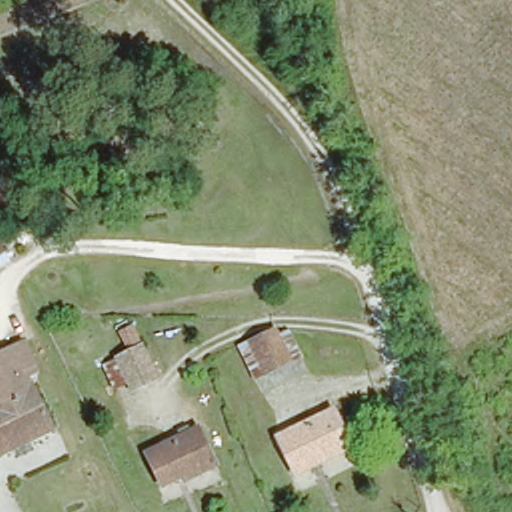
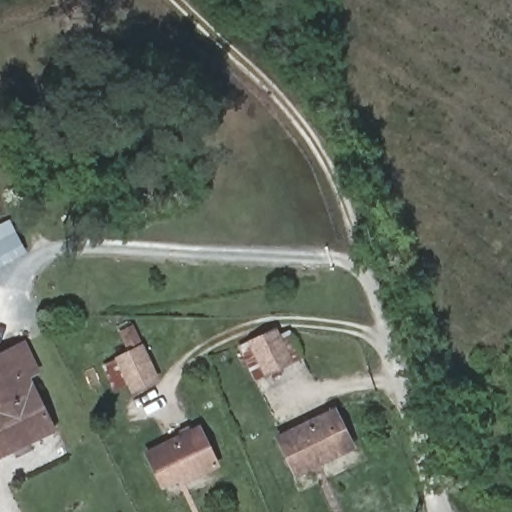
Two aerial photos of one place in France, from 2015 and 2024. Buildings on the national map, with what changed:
new [(9,218),(27,251),(0,265),(0,223),(9,218)]
unchanged [(116,392),(100,360),(123,343),(112,319),(124,316),(158,376),(116,392)]
unchanged [(268,327),(285,357),(262,369),(246,338),(268,327)]
unchanged [(21,332),(39,369),(30,377),(51,426),(0,451),(0,343),(21,332)]
unchanged [(300,473),(278,435),(333,405),(355,443),(300,473)]
unchanged [(169,490),(146,451),(161,442),(197,424),(219,464),(191,480),(169,490)]

